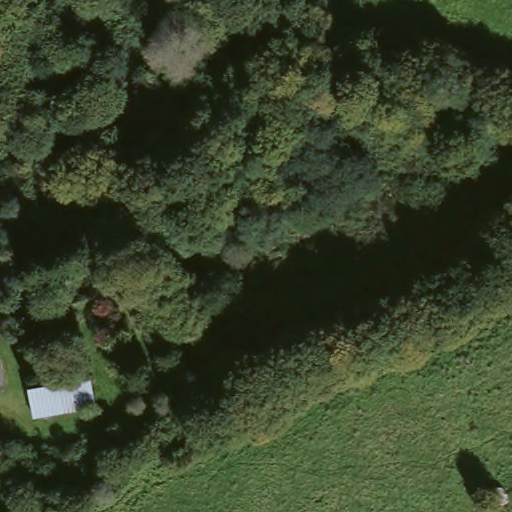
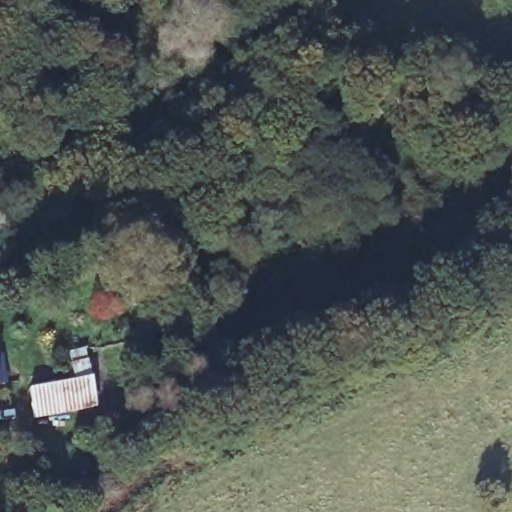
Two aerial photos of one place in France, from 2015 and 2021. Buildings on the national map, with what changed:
unchanged [(14,198),(0,198),(0,174),(13,175),(14,198)]
unchanged [(2,382),(0,383),(0,377),(2,382)]
unchanged [(25,390),(89,377),(97,409),(34,424),(25,390)]

